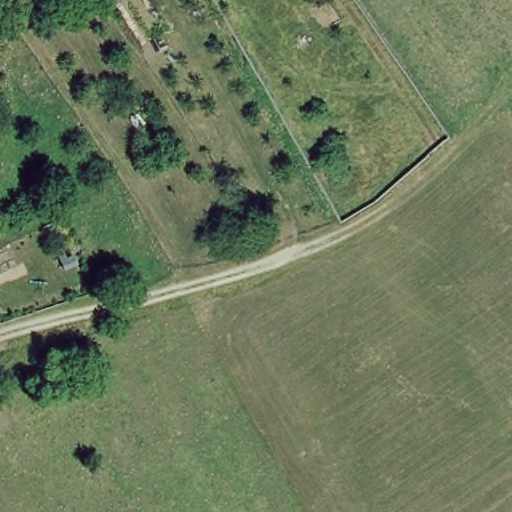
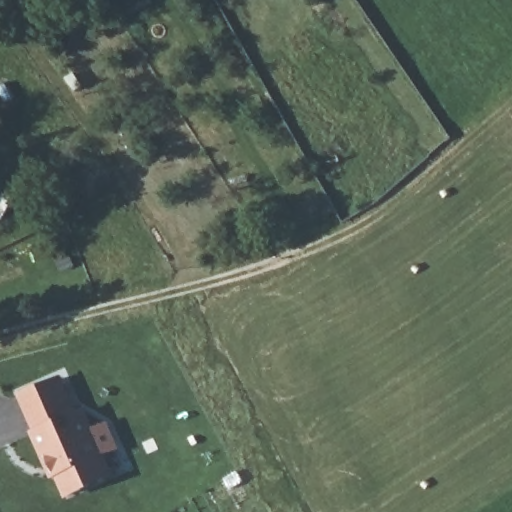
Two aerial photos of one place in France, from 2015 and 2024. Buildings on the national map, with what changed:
new [(120,449),(104,455),(114,477),(64,497),(55,478),(52,480),(31,431),(35,429),(20,394),(63,376),(78,411),(85,409),(92,427),(108,422),(120,449)]

